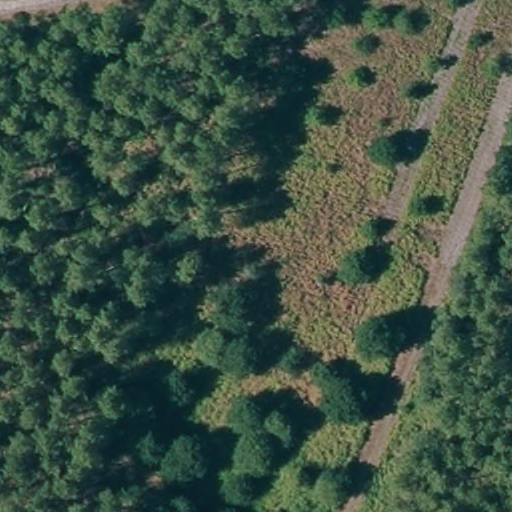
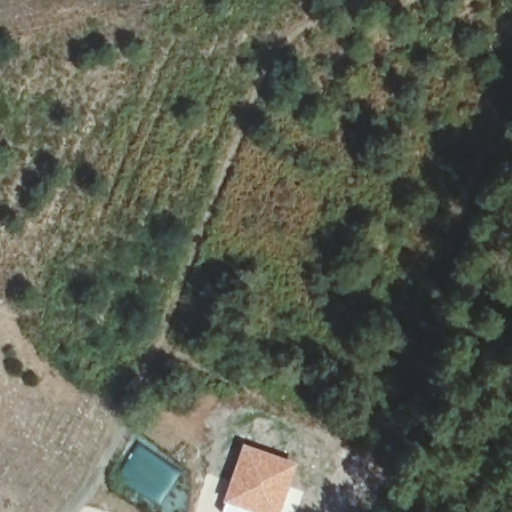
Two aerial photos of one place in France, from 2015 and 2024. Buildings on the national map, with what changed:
new [(226,502),(223,501),(243,443),(298,462),(290,486),(303,490),(295,512),(252,512),(251,512),(222,512),(226,502)]

